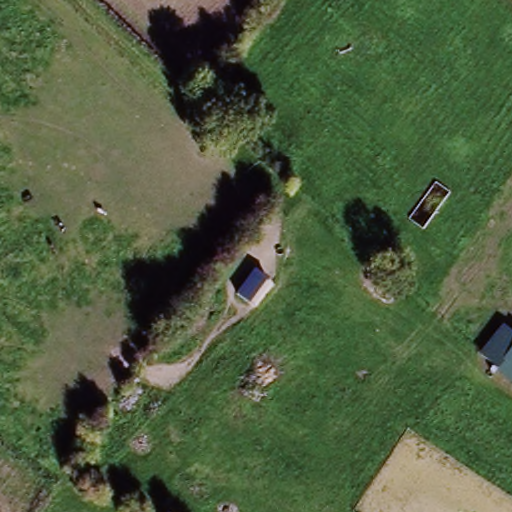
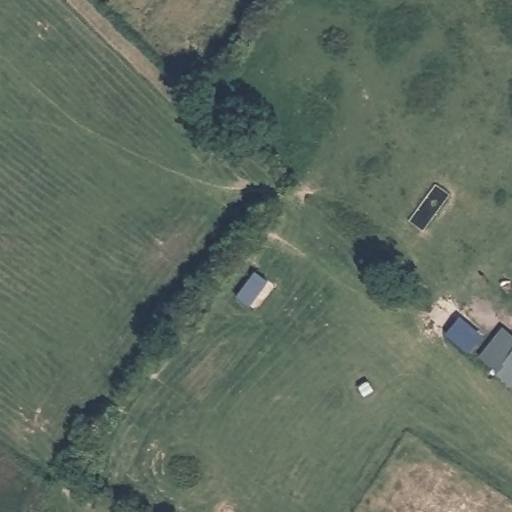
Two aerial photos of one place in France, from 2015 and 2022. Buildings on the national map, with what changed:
unchanged [(479,358),(501,331),(512,339),(512,384),(497,372),(479,358)]

